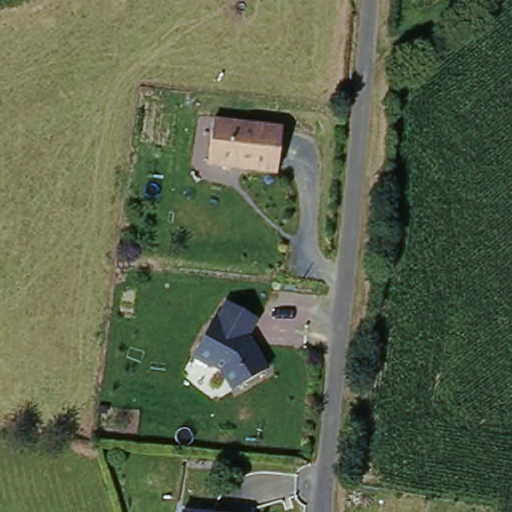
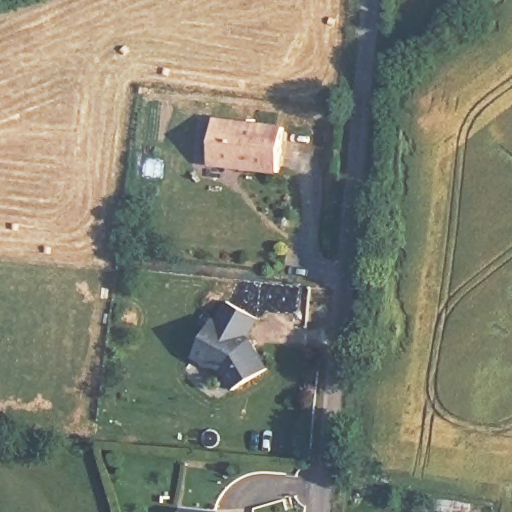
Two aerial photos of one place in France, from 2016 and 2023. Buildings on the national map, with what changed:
unchanged [(285,126),(280,176),(207,165),(214,116),(285,126)]
unchanged [(264,320),(254,338),(273,367),(235,386),(226,371),(192,353),(206,321),(215,324),(228,300),(264,320)]
unchanged [(189,512),(185,512),(185,511),(189,512)]

